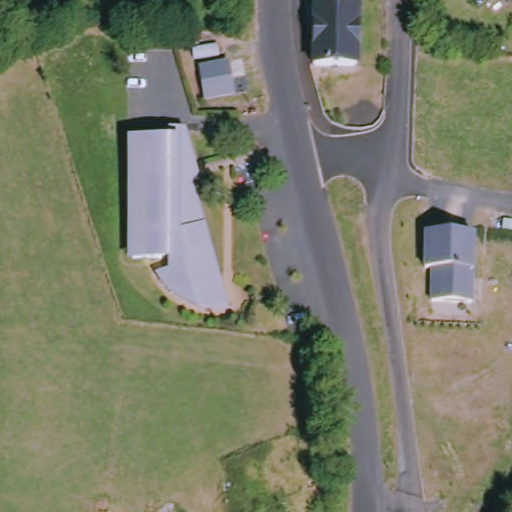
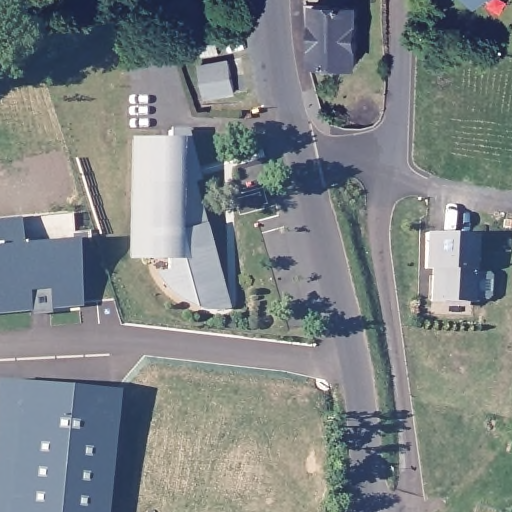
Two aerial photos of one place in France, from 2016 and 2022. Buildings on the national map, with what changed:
unchanged [(471,4),(467,0),(476,0),(471,4)]
unchanged [(308,7),(351,8),(347,67),(307,66),(305,50),(308,7)]
new [(236,95),(205,100),(199,64),(228,60),(236,95)]
unchanged [(189,182),(186,184),(219,311),(197,310),(171,298),(148,271),(158,266),(158,256),(128,255),(129,139),(161,137),(160,134),(176,132),(189,182)]
new [(79,303),(0,312),(0,220),(71,212),(79,303)]
unchanged [(432,268),(422,268),(424,232),(474,233),(472,300),(431,300),(432,268)]
new [(107,512),(0,512),(0,382),(118,390),(107,512)]

